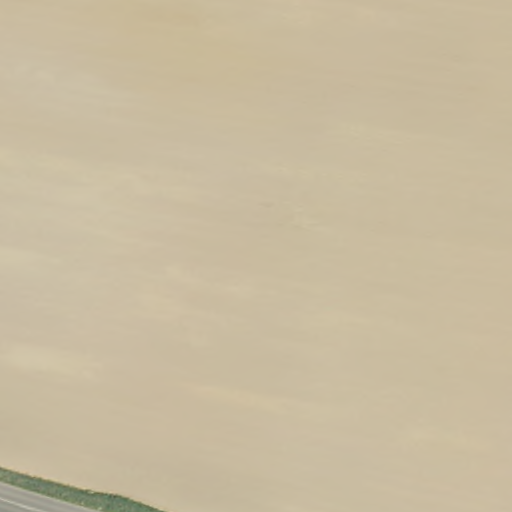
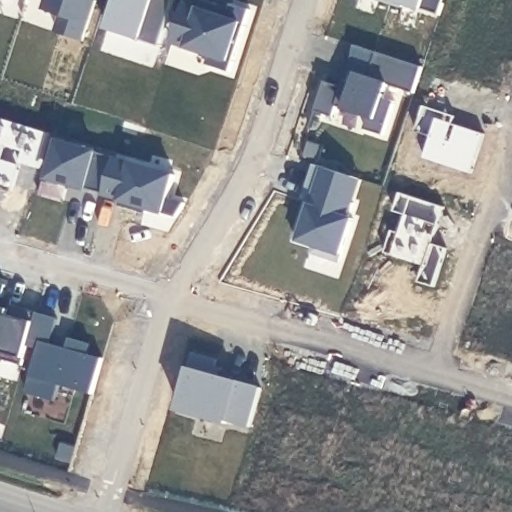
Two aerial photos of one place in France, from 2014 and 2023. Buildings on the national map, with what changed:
new [(57,35),(63,18),(45,12),(49,0),(98,0),(83,43),(57,35)]
new [(119,0),(176,0),(160,49),(108,32),(119,0)]
new [(227,4),(246,10),(225,73),(202,65),(205,55),(172,45),(187,0),(197,0),(226,9),(227,4)]
new [(440,18),(404,6),(403,10),(378,2),(379,0),(445,0),(443,6),(440,18)]
new [(413,96),(387,87),(383,100),(395,104),(383,138),(365,132),(368,119),(337,109),(334,120),(315,114),(326,83),(342,89),(346,81),(358,85),(347,81),(356,48),(374,54),(377,55),(422,70),(413,96)]
new [(51,179),(61,142),(115,157),(105,194),(51,179)]
new [(115,160),(175,177),(168,200),(185,205),(176,219),(147,211),(147,215),(120,207),(122,202),(104,197),(115,160)]
new [(361,182),(348,220),(352,221),(338,263),(312,255),(315,248),(295,241),(301,223),(306,224),(313,200),(306,198),(316,167),(361,182)]
new [(313,200),(306,224),(301,223),(309,199),(313,200)]
new [(13,302),(12,307),(37,315),(22,367),(0,361),(0,286),(7,287),(3,300),(13,302)]
new [(57,320),(50,346),(67,351),(71,340),(91,346),(88,357),(102,361),(92,397),(60,387),(56,404),(27,395),(39,351),(28,348),(37,315),(57,320)]
new [(227,423),(226,426),(179,413),(195,356),(217,362),(215,370),(222,372),(220,379),(261,390),(250,429),(227,423)]

